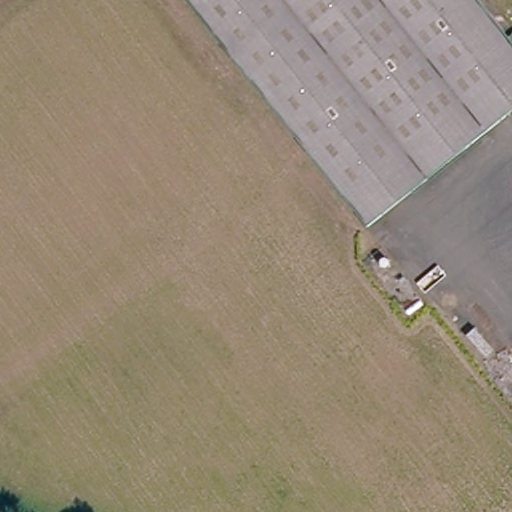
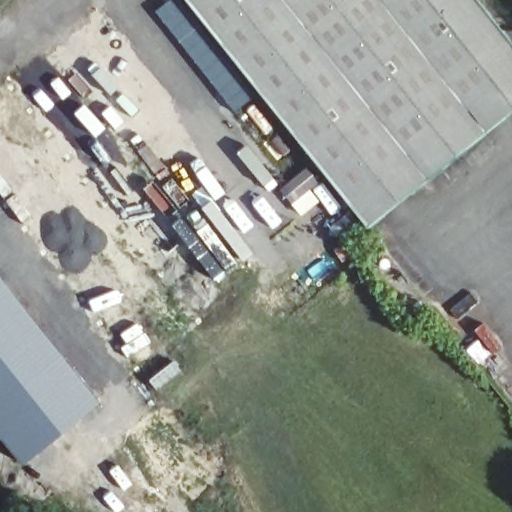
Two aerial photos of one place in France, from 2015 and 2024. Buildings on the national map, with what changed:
unchanged [(512,115),(361,232),(183,0),(475,0),(512,49),(512,115)]
new [(99,402),(21,466),(0,440),(0,278),(99,402)]

